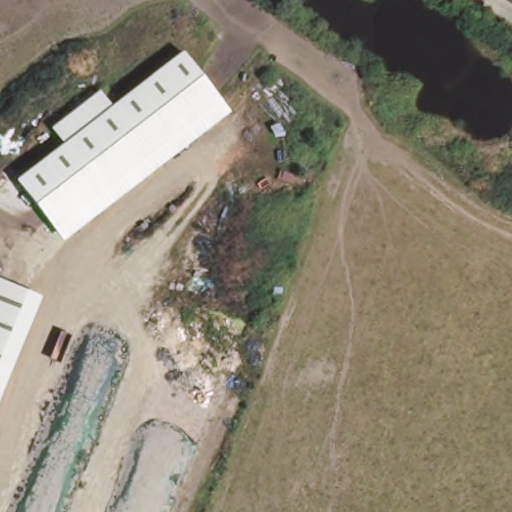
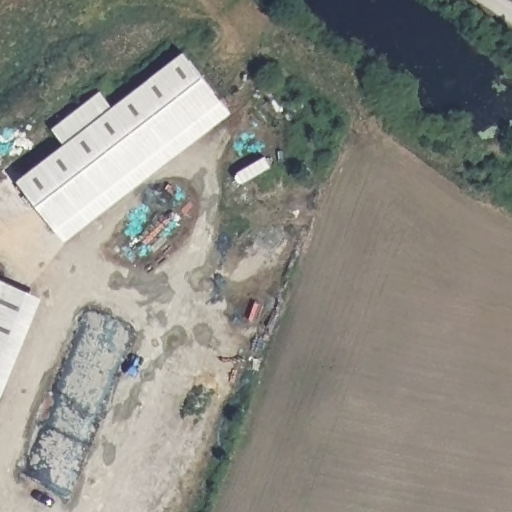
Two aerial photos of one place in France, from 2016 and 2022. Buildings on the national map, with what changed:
unchanged [(63,144),(51,127),(100,91),(112,107),(184,51),(231,114),(63,241),(16,180),(63,144)]
unchanged [(41,298),(0,397),(0,279),(41,298)]

